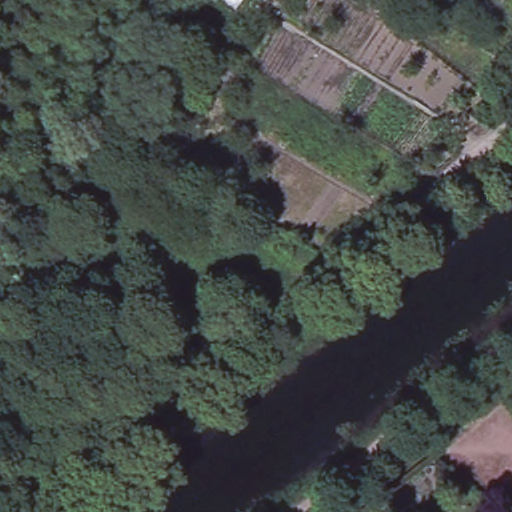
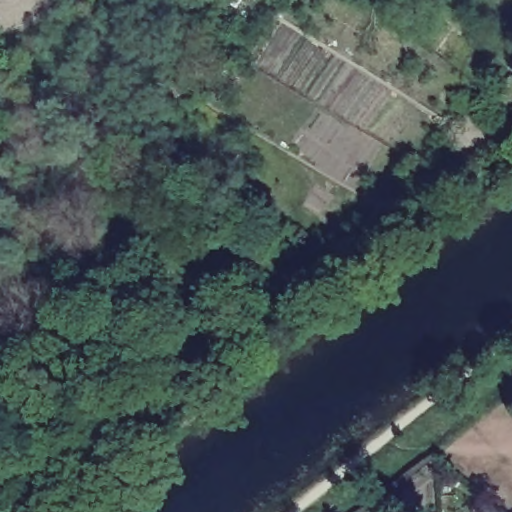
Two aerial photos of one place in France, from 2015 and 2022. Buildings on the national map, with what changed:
unchanged [(221,1),(221,0),(243,0),(238,10),(221,1)]

